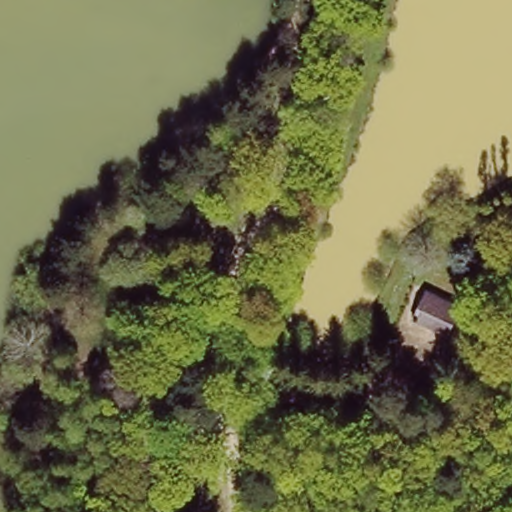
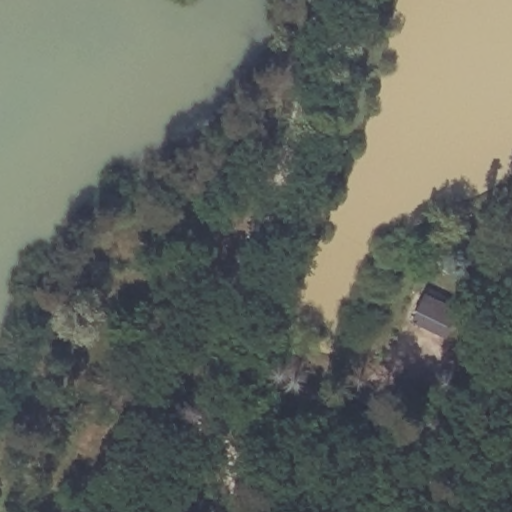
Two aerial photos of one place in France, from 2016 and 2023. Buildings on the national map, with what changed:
unchanged [(445,337),(408,319),(423,289),(460,306),(445,337)]

